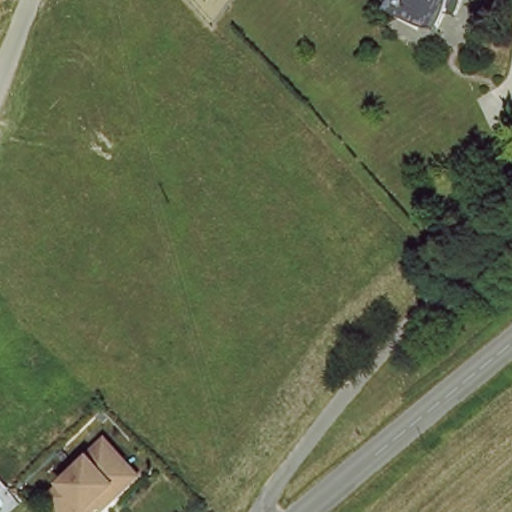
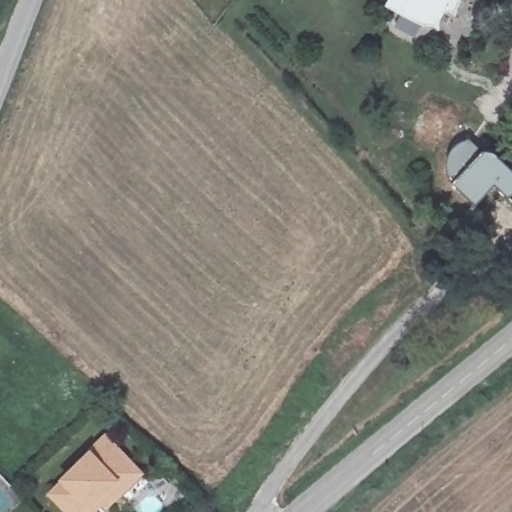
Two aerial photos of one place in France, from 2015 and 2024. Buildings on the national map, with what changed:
unchanged [(454,9),(444,7),(436,22),(422,20),(420,9),(407,1),(398,7),(385,0),(458,0),(454,9)]
new [(512,171),(512,193),(509,197),(494,185),(475,205),(450,182),(453,180),(448,174),(446,168),(448,153),(469,137),(482,148),(495,153),(512,171)]
unchanged [(95,512),(73,512),(56,494),(69,481),(68,480),(93,455),(92,454),(110,437),(132,460),(144,472),(128,488),(111,504),(107,500),(95,512)]

